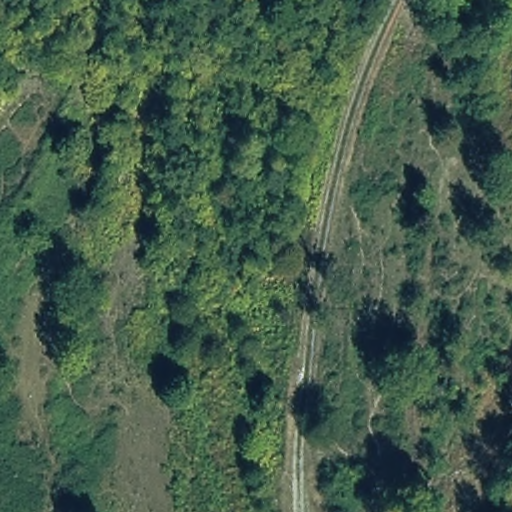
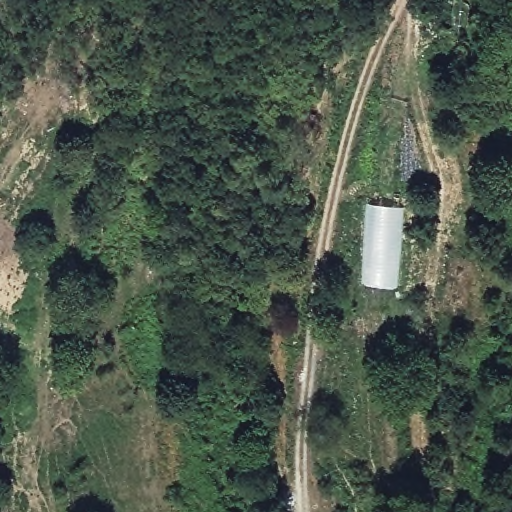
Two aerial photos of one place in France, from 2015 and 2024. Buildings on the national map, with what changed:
new [(366,205),(404,207),(398,285),(360,283),(366,205)]

